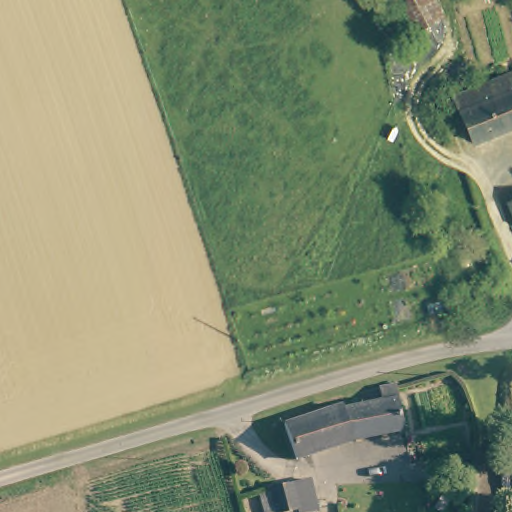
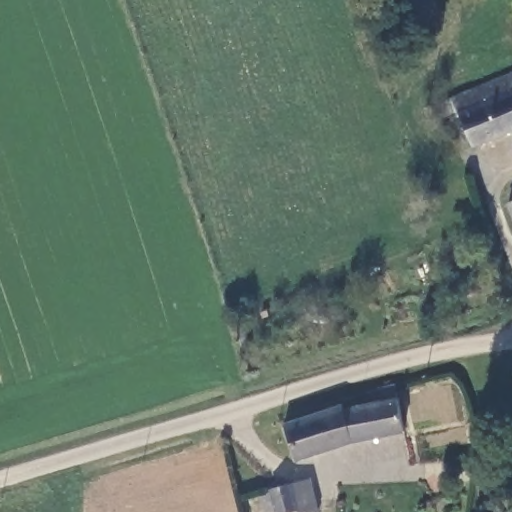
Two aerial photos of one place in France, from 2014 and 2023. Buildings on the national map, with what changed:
unchanged [(443,20),(410,34),(393,0),(433,0),(443,20)]
unchanged [(464,118),(458,102),(512,83),(512,136),(475,150),(464,118)]
unchanged [(509,212),(512,211),(512,219),(510,215),(509,212)]
unchanged [(290,423),(346,405),(347,410),(387,401),(384,390),(401,384),(411,423),(300,458),(290,423)]
unchanged [(323,508),(324,512),(311,512),(311,510),(305,511),(305,512),(285,512),(281,493),(316,484),(323,508)]

